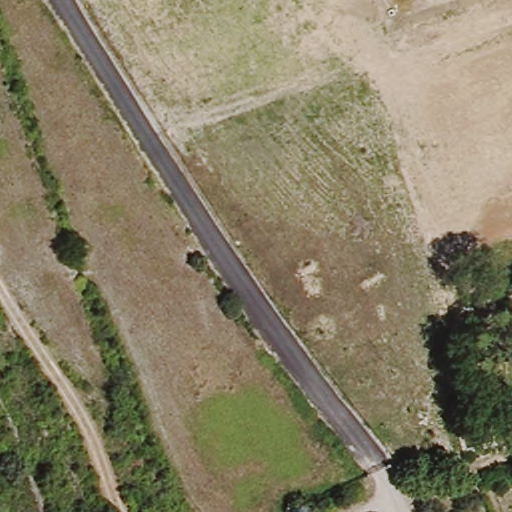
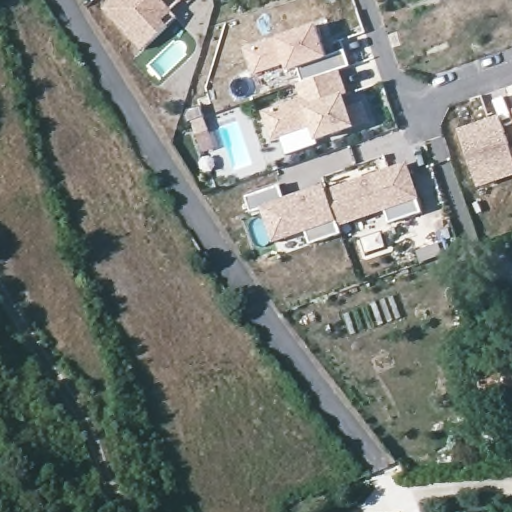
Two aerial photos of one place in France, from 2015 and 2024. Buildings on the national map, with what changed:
unchanged [(178,18),(169,26),(145,49),(106,9),(115,0),(182,0),(171,11),(178,18)]
new [(317,24),(327,52),(347,51),(352,66),(340,70),(346,95),(348,102),(363,102),(370,123),(354,125),(355,127),(316,141),(309,122),(272,139),(262,110),(302,97),(298,84),(303,82),(296,68),(288,71),(282,57),(254,73),(245,47),(317,24)]
new [(512,148),(512,177),(480,188),(460,129),(499,115),(510,148),(512,148)]
new [(408,162),(424,212),(390,224),(385,211),(340,227),(328,187),(408,162)]
new [(328,187),(340,227),(343,233),(310,244),(306,233),(273,244),(259,208),(251,211),(245,196),(280,184),(285,196),(326,184),(328,187)]
unchanged [(477,363),(486,361),(489,369),(512,364),(512,396),(486,402),(484,396),(477,363)]

